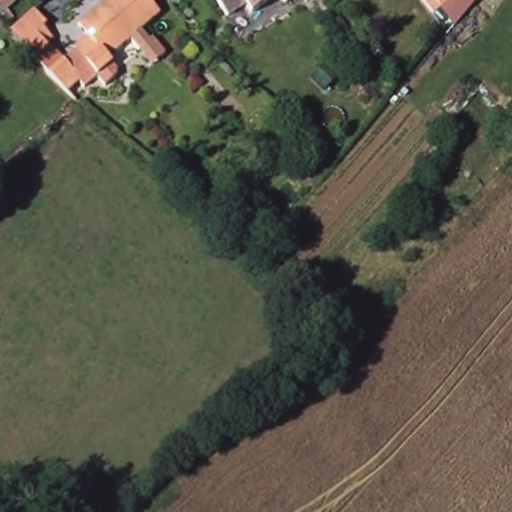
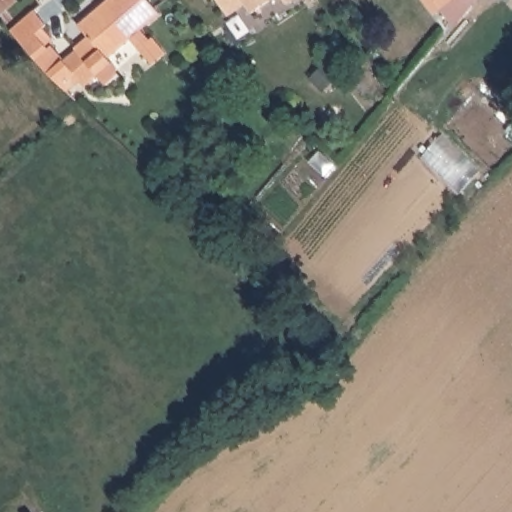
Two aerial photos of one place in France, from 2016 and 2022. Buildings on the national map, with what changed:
unchanged [(129,40),(102,59),(107,66),(84,82),(67,61),(64,55),(77,46),(75,42),(84,36),(76,23),(107,0),(146,0),(159,19),(140,32),(149,45),(137,53),(129,40)]
unchanged [(242,7),(227,17),(215,0),(275,0),(250,17),(242,7)]
unchanged [(285,0),(291,0),(287,3),(285,0)]
unchanged [(434,0),(449,0),(439,7),(434,0)]
unchanged [(39,3),(52,19),(51,35),(64,55),(67,61),(52,76),(12,30),(39,3)]

